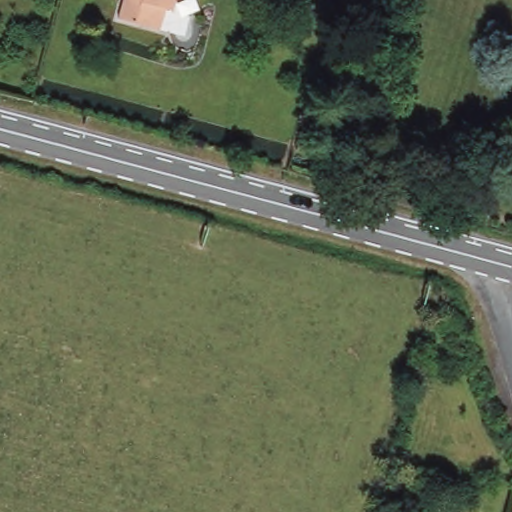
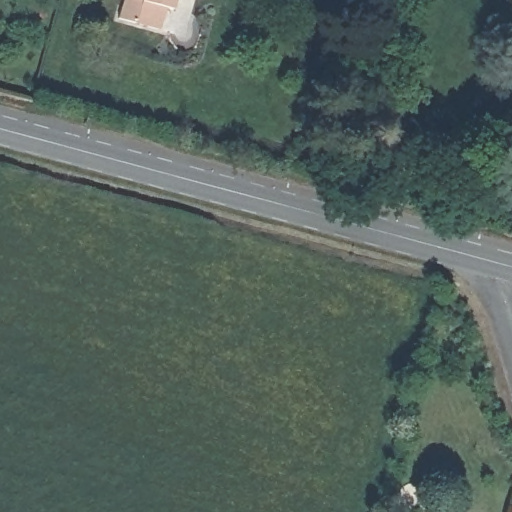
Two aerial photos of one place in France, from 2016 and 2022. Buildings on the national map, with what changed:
unchanged [(168,6),(164,27),(124,17),(129,0),(180,0),(179,7),(168,6)]

